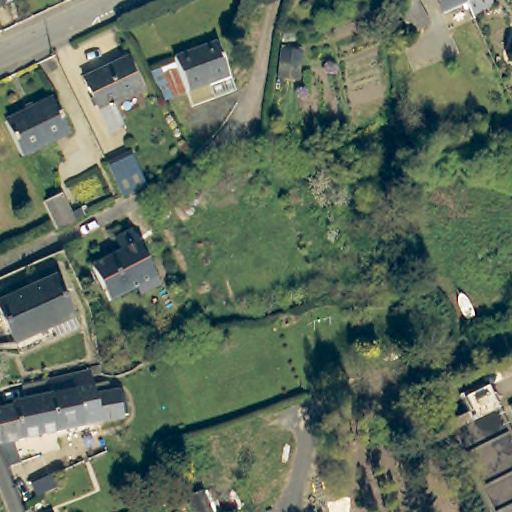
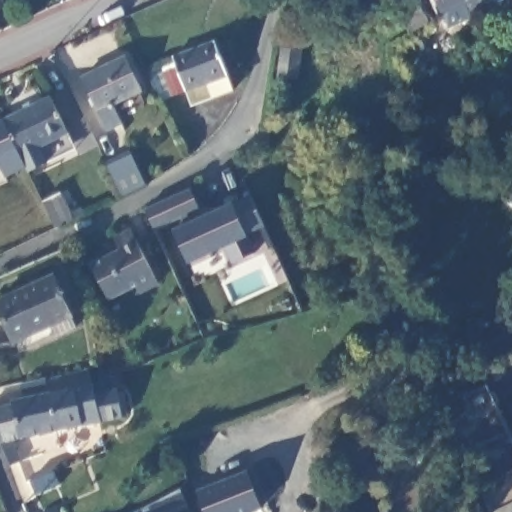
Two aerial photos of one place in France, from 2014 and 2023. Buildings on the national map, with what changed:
unchanged [(0,7),(0,0),(1,0),(4,5),(0,7)]
unchanged [(410,33),(395,5),(405,0),(416,0),(428,22),(410,33)]
unchanged [(477,0),(481,11),(472,15),(467,2),(442,14),(436,0),(477,0)]
unchanged [(215,42),(234,92),(193,107),(175,57),(215,42)]
unchanged [(298,51),(295,79),(276,76),(279,50),(298,51)]
unchanged [(125,59),(140,92),(112,105),(120,124),(106,130),(83,79),(125,59)]
unchanged [(175,69),(185,92),(174,96),(164,74),(175,69)]
unchanged [(52,99),(69,134),(21,157),(5,122),(52,99)]
new [(21,157),(26,168),(5,178),(0,167),(0,168),(0,124),(5,122),(21,157)]
unchanged [(130,154),(145,186),(122,197),(107,164),(130,154)]
new [(250,232),(257,253),(230,265),(225,249),(190,266),(171,228),(155,234),(145,210),(191,187),(203,216),(234,204),(251,195),(264,226),(250,232)]
unchanged [(61,195),(74,221),(56,230),(44,203),(61,195)]
unchanged [(157,282),(136,292),(133,285),(109,297),(91,263),(120,250),(115,240),(132,232),(157,282)]
unchanged [(50,327),(15,342),(0,309),(0,301),(54,277),(72,317),(77,327),(55,337),(50,327)]
unchanged [(45,386),(45,382),(89,373),(94,398),(117,393),(117,396),(122,395),(127,417),(122,418),(123,421),(101,426),(102,427),(56,436),(45,386)]
unchanged [(21,465),(10,470),(9,467),(6,461),(5,457),(3,455),(0,449),(0,414),(14,410),(12,405),(24,403),(22,391),(45,386),(56,436),(13,445),(21,465)]
unchanged [(496,395),(512,430),(512,512),(487,512),(448,422),(496,395)]
new [(255,512),(203,512),(195,493),(249,470),(264,508),(255,512)]
unchanged [(30,482),(51,474),(57,487),(35,496),(30,482)]

